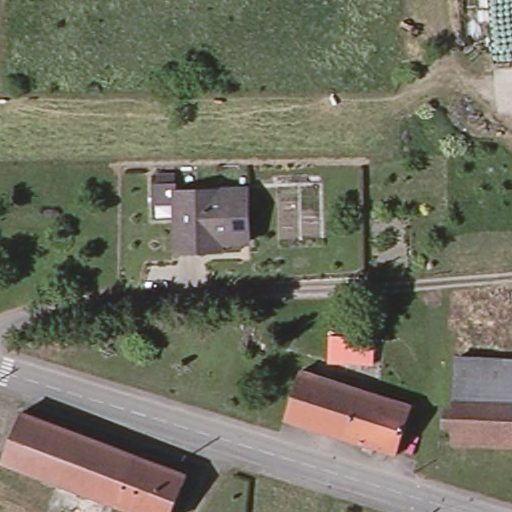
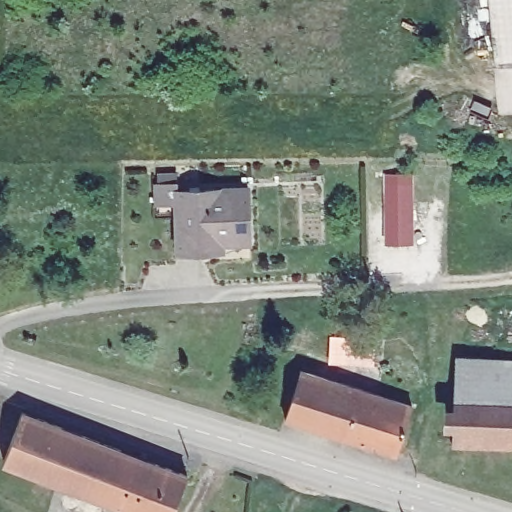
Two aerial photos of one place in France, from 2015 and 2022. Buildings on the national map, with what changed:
new [(413,244),(385,244),(383,173),(413,172),(413,244)]
unchanged [(248,249),(220,250),(220,258),(175,259),(175,218),(153,218),(154,185),(155,185),(156,175),(175,176),(175,186),(176,186),(176,195),(248,195),(248,249)]
unchanged [(371,352),(370,375),(326,372),(327,349),(371,352)]
unchanged [(450,366),(512,366),(512,397),(448,397),(450,366)]
unchanged [(287,416),(302,371),(362,390),(347,433),(287,416)]
unchanged [(415,406),(401,449),(347,433),(362,390),(415,406)]
unchanged [(512,397),(512,443),(447,442),(448,397),(512,397)]
unchanged [(3,462),(18,416),(134,458),(117,505),(3,462)]
unchanged [(186,476),(173,512),(135,512),(117,505),(134,458),(186,476)]

